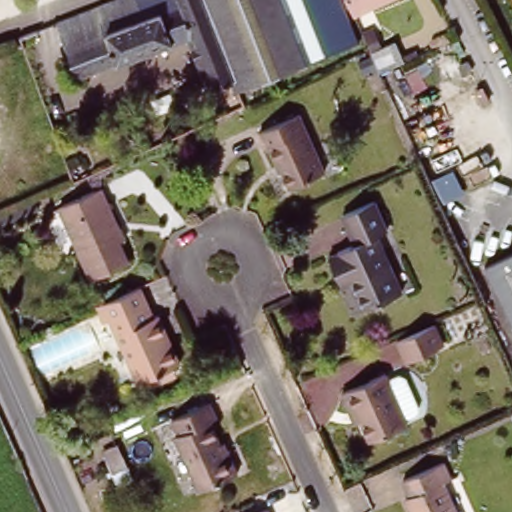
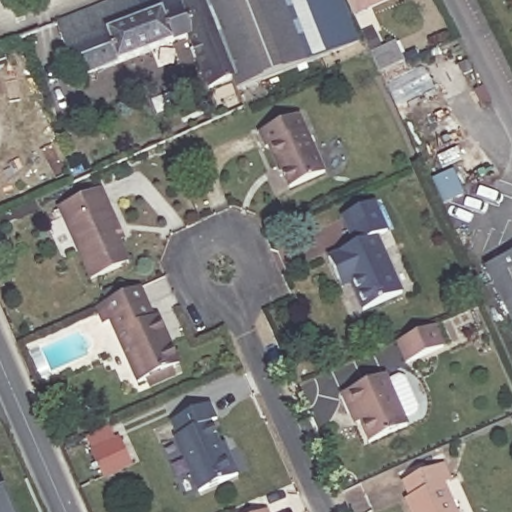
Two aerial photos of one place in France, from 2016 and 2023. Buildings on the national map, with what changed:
unchanged [(111,0),(175,0),(188,34),(78,76),(56,21),(79,12),(111,0)]
unchanged [(221,43),(238,89),(236,90),(236,93),(226,97),(226,94),(221,96),(221,100),(215,102),(199,63),(188,34),(175,0),(204,0),(220,44),(221,43)]
unchanged [(221,43),(220,44),(204,0),(277,0),(302,64),(238,89),(221,43)]
unchanged [(302,64),(277,0),(341,0),(358,41),(302,64)]
unchanged [(348,0),(377,0),(353,11),(348,0)]
unchanged [(399,37),(408,57),(381,71),(373,52),(371,50),(394,39),(399,37)]
unchanged [(277,164),(274,165),(266,145),(263,146),(256,130),(297,113),(323,171),(287,186),(277,164)]
unchanged [(117,247),(126,267),(88,284),(55,211),(98,193),(115,232),(121,245),(117,247)]
unchanged [(336,277),(328,258),(338,254),(336,251),(354,244),(341,215),(374,200),(388,230),(376,236),(402,292),(364,310),(351,283),(341,288),(336,277)]
unchanged [(486,267),(512,254),(512,319),(486,267)]
unchanged [(137,388),(134,382),(108,325),(103,327),(95,311),(138,292),(152,324),(158,321),(164,337),(179,369),(173,371),(137,388)]
unchanged [(430,320),(440,343),(404,360),(393,337),(430,320)]
unchanged [(350,414),(341,395),(384,375),(408,426),(369,443),(358,420),(353,421),(350,414)]
unchanged [(233,457),(241,473),(199,491),(174,437),(178,435),(171,420),(211,403),(218,418),(211,420),(225,451),(229,450),(233,457)]
unchanged [(99,452),(113,446),(123,469),(109,475),(99,452)]
unchanged [(401,501),(404,499),(397,482),(439,465),(446,481),(439,483),(451,512),(405,512),(401,501)]
new [(14,512),(0,512),(0,491),(4,489),(14,512)]
unchanged [(266,509),(267,512),(259,512),(266,509)]

